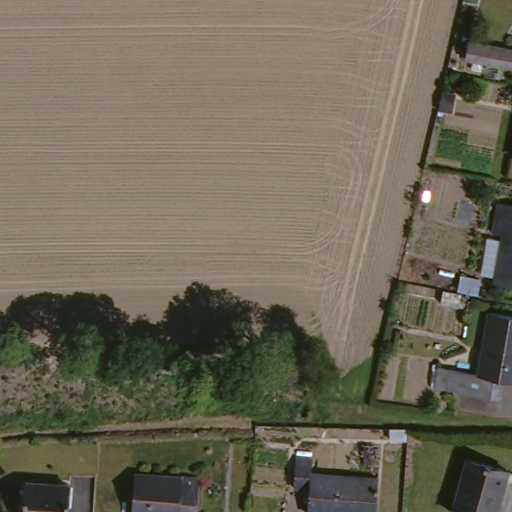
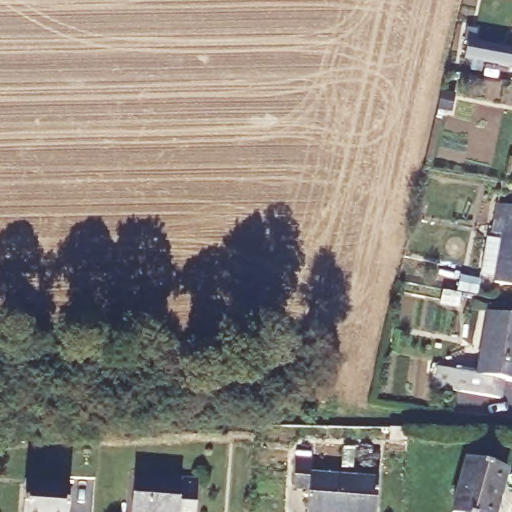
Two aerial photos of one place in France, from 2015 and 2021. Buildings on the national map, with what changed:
unchanged [(458,44),(506,49),(504,67),(455,61),(458,44)]
unchanged [(499,283),(483,281),(486,248),(504,250),(506,240),(495,238),(500,208),(512,210),(512,290),(498,288),(499,283)]
unchanged [(479,294),(458,294),(462,272),(482,274),(479,294)]
unchanged [(482,357),(492,295),(512,297),(512,360),(508,360),(505,379),(452,373),(454,354),(482,357)]
unchanged [(314,508),(316,486),(298,484),(301,454),(317,456),(318,467),(363,471),(360,512),(354,512),(314,508)]
unchanged [(458,507),(469,455),(506,463),(496,512),(478,512),(458,507)]
unchanged [(198,506),(182,505),(182,512),(169,512),(132,510),(134,467),(200,470),(198,506)]
unchanged [(71,512),(23,512),(23,482),(71,483),(71,512)]

